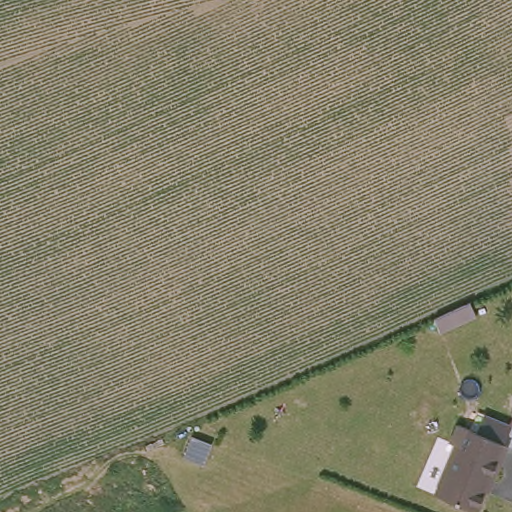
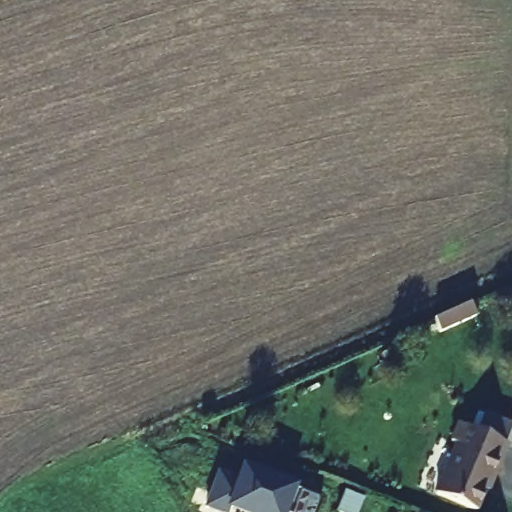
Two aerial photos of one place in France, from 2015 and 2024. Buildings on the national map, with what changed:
unchanged [(510,424),(512,419),(512,428),(505,447),(479,436),(488,415),(510,424)]
unchanged [(498,465),(495,463),(475,512),(472,512),(434,496),(455,447),(449,444),(457,426),(505,447),(498,465)]
new [(318,500),(314,512),(231,512),(228,511),(228,512),(207,512),(203,510),(216,471),(234,479),(239,466),(297,487),(294,492),(318,500)]

